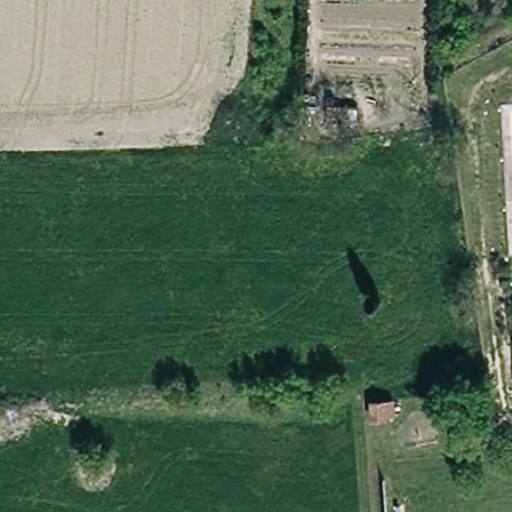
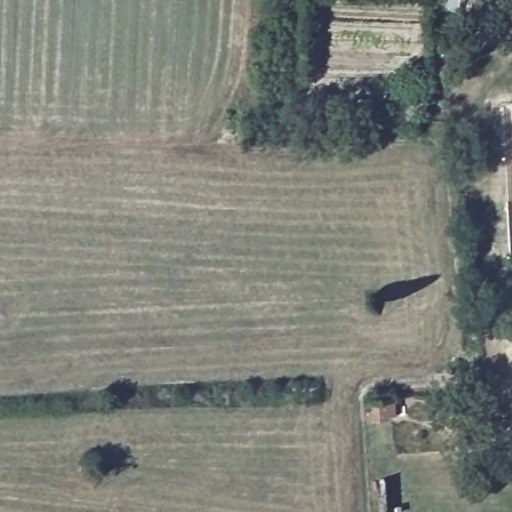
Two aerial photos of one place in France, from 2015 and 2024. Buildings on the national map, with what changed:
unchanged [(339,115),(327,115),(327,105),(339,105),(339,115)]
unchanged [(510,339),(512,339),(512,355),(510,339)]
unchanged [(393,394),(392,418),(370,418),(370,397),(393,394)]

